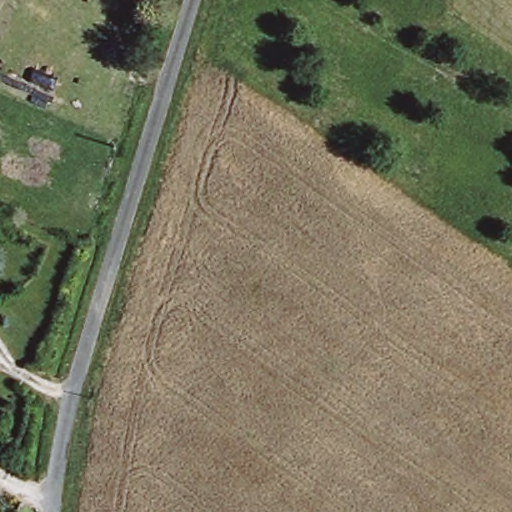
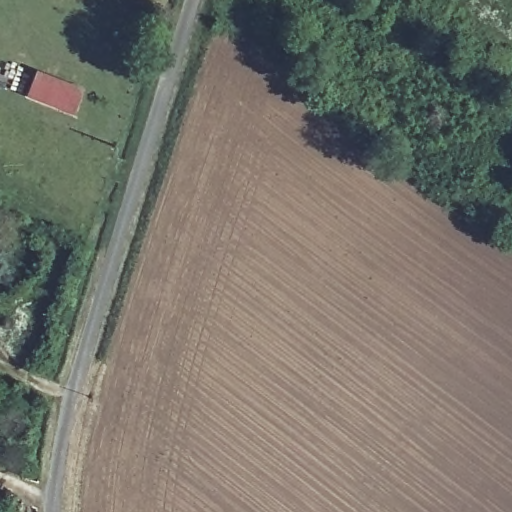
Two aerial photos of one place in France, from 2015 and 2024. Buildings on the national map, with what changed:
new [(39,78),(85,97),(78,114),(31,95),(39,78)]

